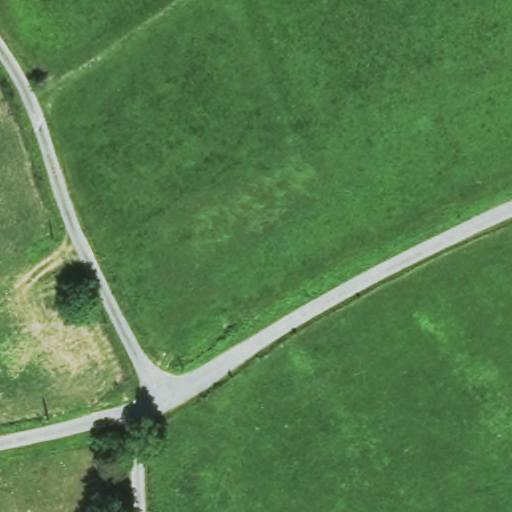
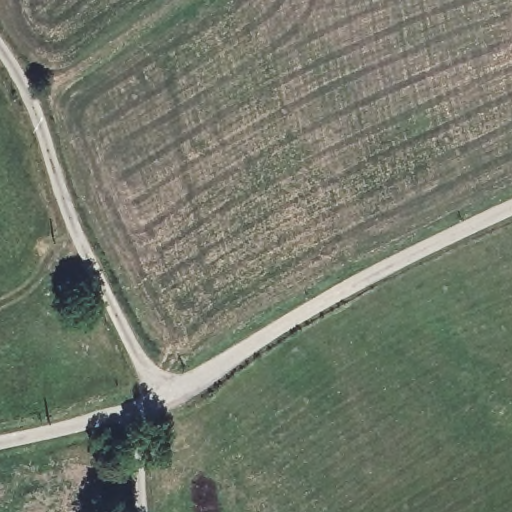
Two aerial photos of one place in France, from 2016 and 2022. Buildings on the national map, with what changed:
unchanged [(76,300),(42,307),(33,272),(68,267),(76,300)]

